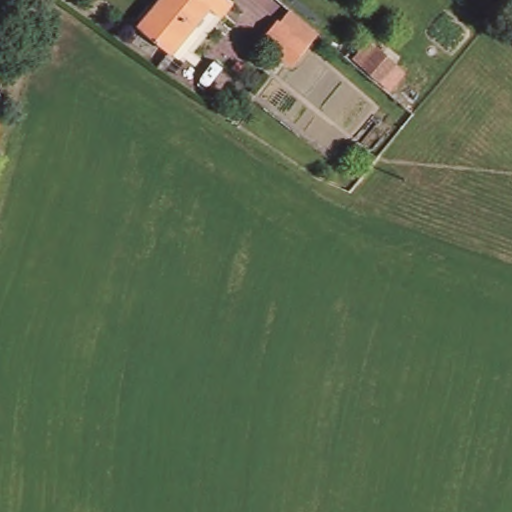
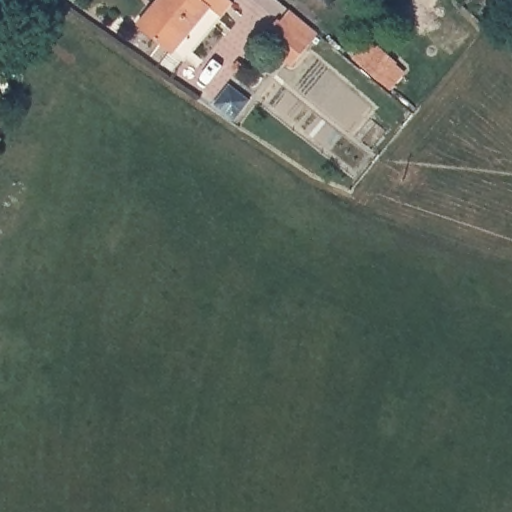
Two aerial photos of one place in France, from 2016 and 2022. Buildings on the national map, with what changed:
unchanged [(143,22),(161,0),(236,0),(189,58),(143,22)]
unchanged [(260,32),(263,27),(274,14),(290,26),(280,40),(276,45),(260,32)]

